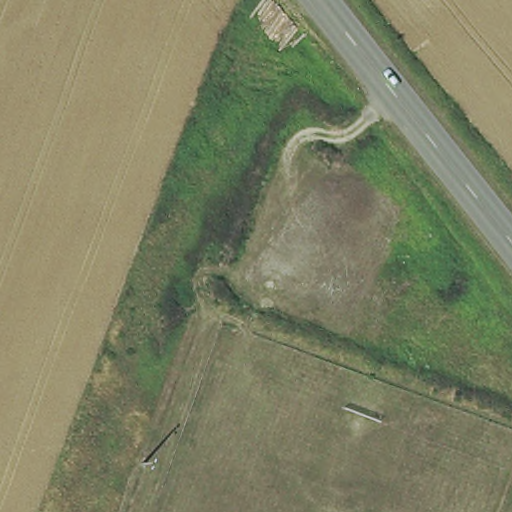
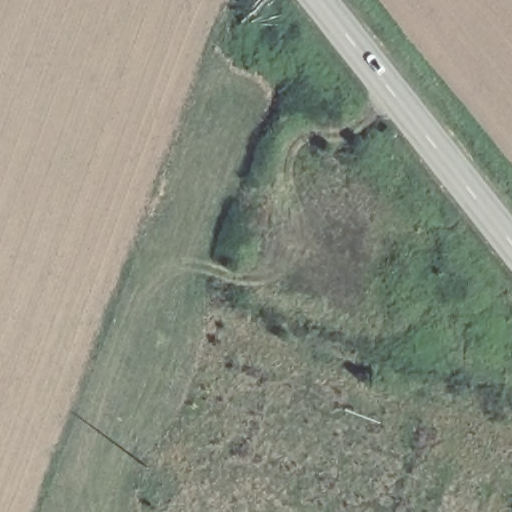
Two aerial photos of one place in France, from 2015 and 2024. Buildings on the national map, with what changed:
[]

